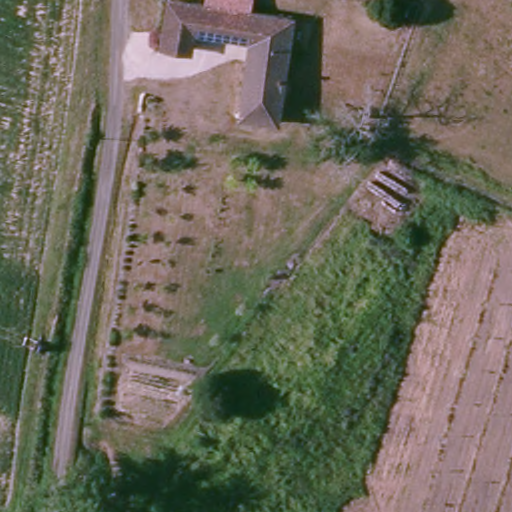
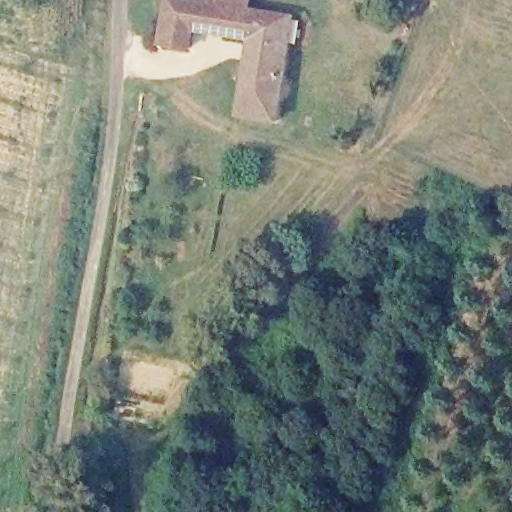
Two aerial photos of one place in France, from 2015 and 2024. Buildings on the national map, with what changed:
unchanged [(235,111),(250,40),(197,30),(192,51),(162,46),(170,0),(195,0),(208,2),(208,0),(252,0),(251,9),(269,12),(300,18),(280,120),(235,111)]

